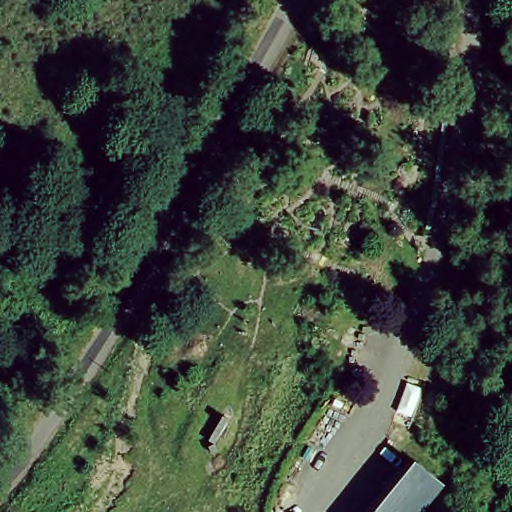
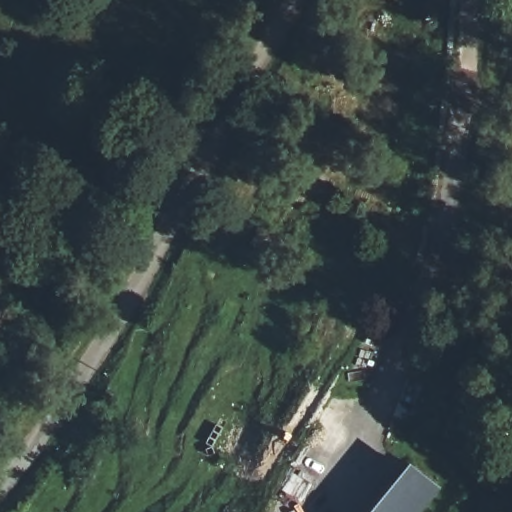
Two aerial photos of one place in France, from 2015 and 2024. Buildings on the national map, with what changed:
unchanged [(419,512),(377,512),(412,470),(437,490),(419,512)]

